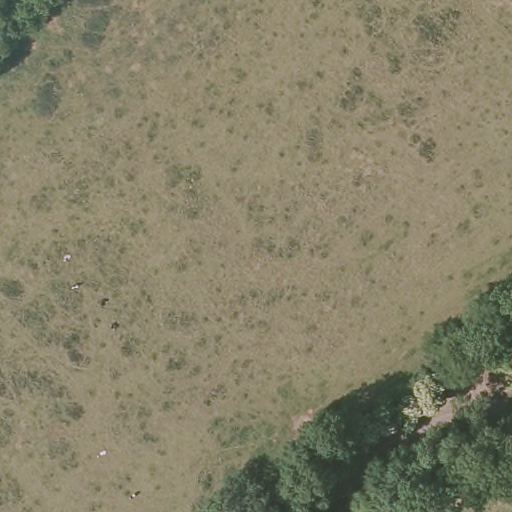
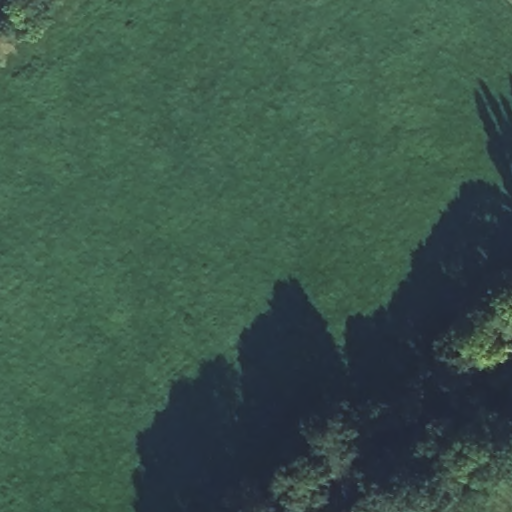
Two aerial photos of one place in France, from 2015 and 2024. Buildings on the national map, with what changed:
unchanged [(512,359),(512,361),(511,361),(512,359)]

